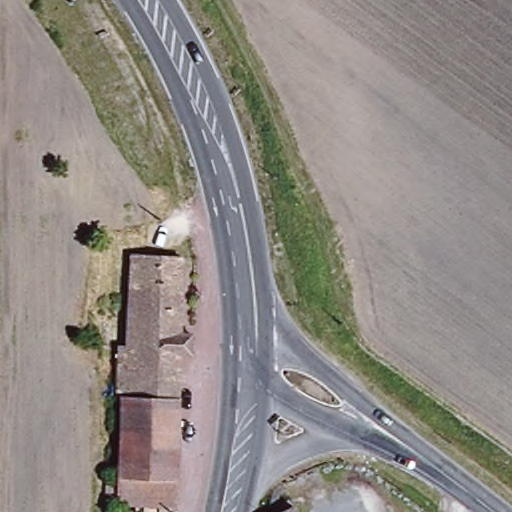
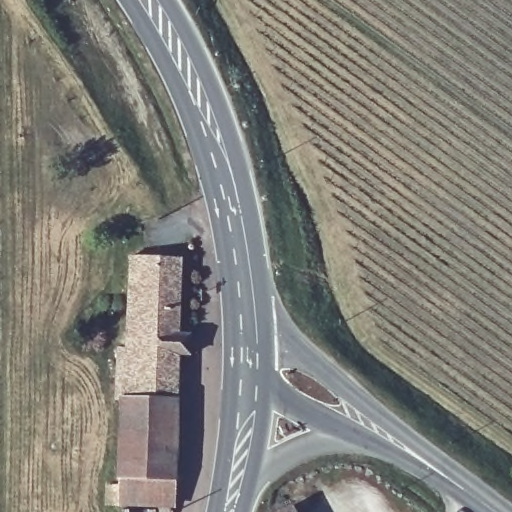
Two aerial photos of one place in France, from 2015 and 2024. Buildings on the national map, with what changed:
unchanged [(138,257),(194,262),(190,302),(134,296),(138,257)]
unchanged [(128,351),(134,296),(190,302),(186,337),(198,338),(196,358),(184,357),(172,475),(118,471),(128,351)]
unchanged [(116,496),(102,495),(117,350),(128,351),(118,471),(116,496)]
unchanged [(169,502),(116,496),(118,471),(172,475),(169,502)]

